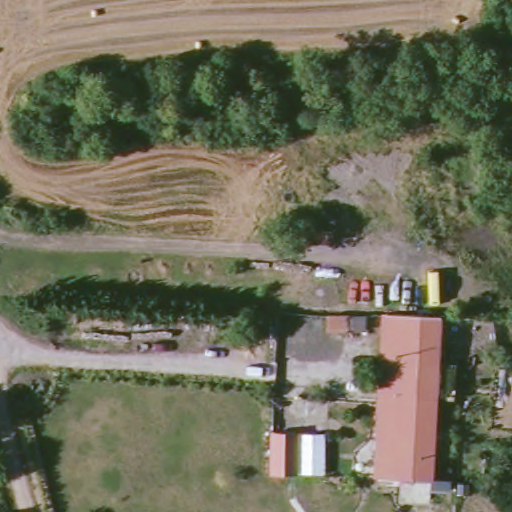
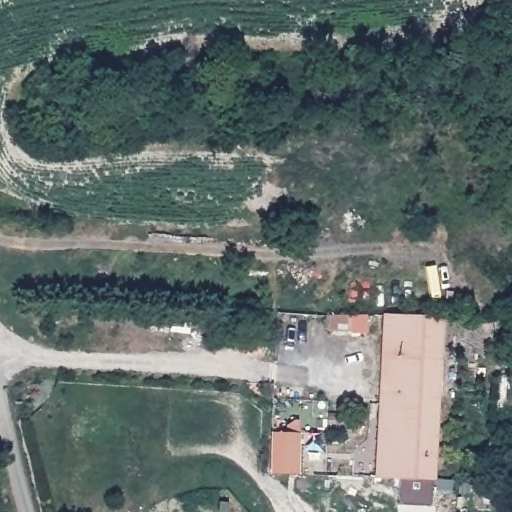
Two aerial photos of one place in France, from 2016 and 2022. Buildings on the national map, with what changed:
unchanged [(373,473),(382,310),(438,311),(429,475),(373,473)]
unchanged [(350,329),(350,313),(367,313),(367,330),(350,329)]
unchanged [(270,475),(272,432),(325,435),(325,474),(270,475)]

